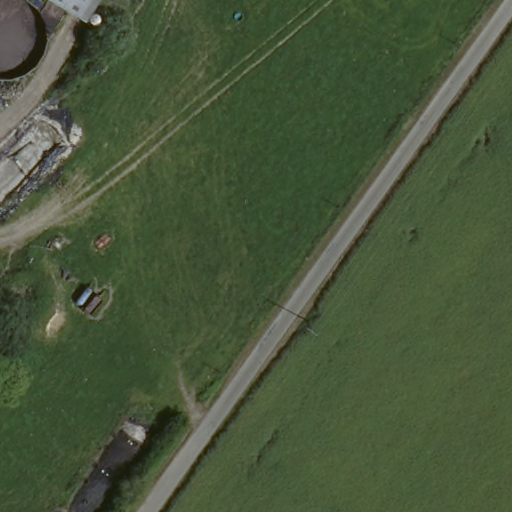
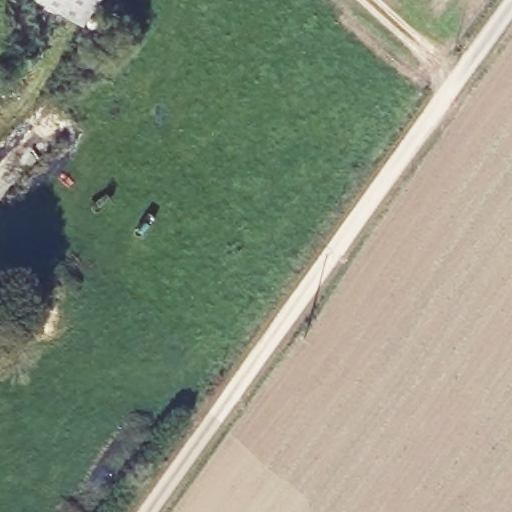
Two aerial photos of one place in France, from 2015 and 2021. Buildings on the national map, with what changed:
unchanged [(87,16),(62,0),(98,0),(87,16)]

